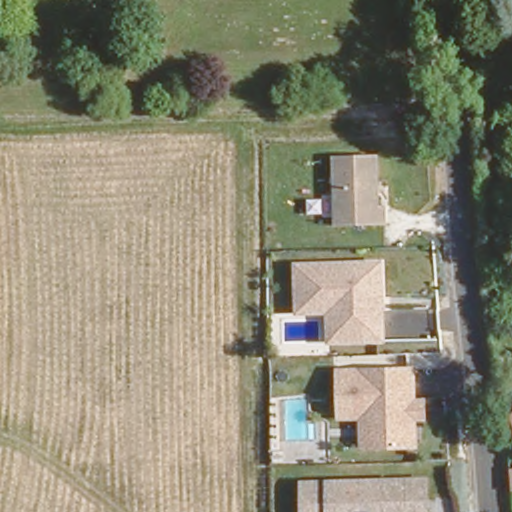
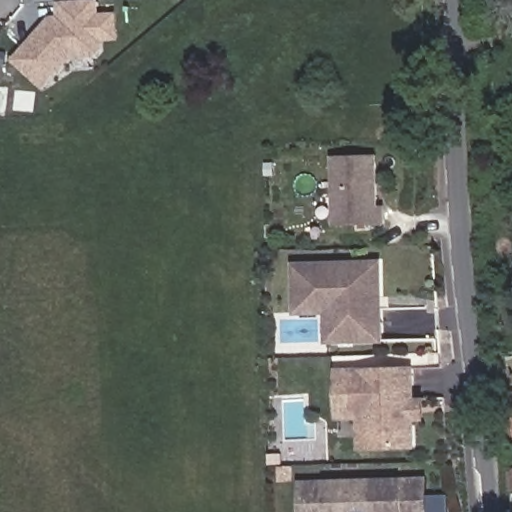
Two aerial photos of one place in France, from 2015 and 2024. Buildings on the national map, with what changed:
new [(67,0),(99,0),(99,13),(118,12),(119,40),(100,40),(101,51),(96,57),(70,57),(44,87),(11,60),(51,16),(59,16),(57,1),(67,0)]
unchanged [(333,227),(330,156),(375,155),(377,227),(333,227)]
unchanged [(325,343),(323,313),(292,314),(292,262),(384,259),(387,342),(325,343)]
unchanged [(417,394),(427,395),(430,421),(417,422),(417,449),(359,453),(357,422),(336,422),(334,369),(417,366),(417,394)]
unchanged [(506,412),(512,409),(512,425),(506,412)]
unchanged [(429,476),(430,512),(298,512),(297,480),(429,476)]

